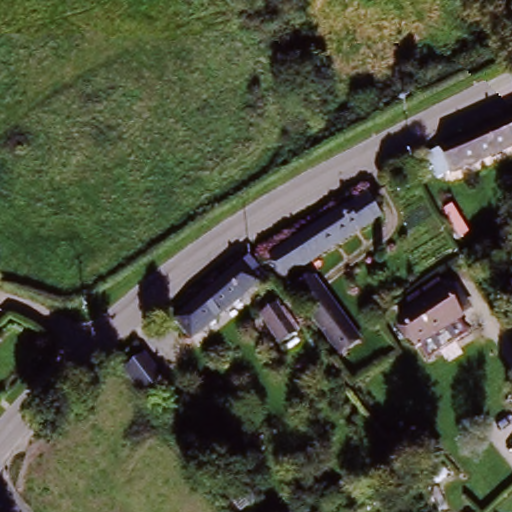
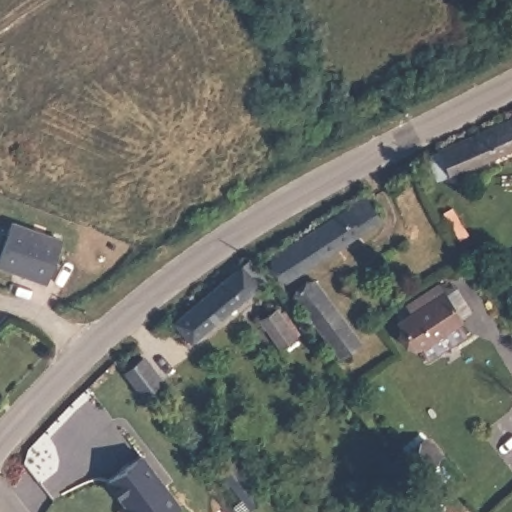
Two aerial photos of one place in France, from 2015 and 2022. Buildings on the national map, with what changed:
unchanged [(512,121),(512,144),(442,174),(434,154),(512,121)]
unchanged [(311,271),(273,295),(267,285),(191,350),(173,325),(251,260),(254,266),(366,202),(385,223),(311,271)]
unchanged [(506,254),(495,237),(512,227),(512,265),(506,254)]
new [(15,230),(64,247),(49,291),(0,272),(15,230)]
unchanged [(363,345),(341,362),(290,297),(317,281),(363,345)]
unchanged [(434,360),(426,348),(424,350),(405,322),(414,316),(407,307),(439,285),(445,294),(463,320),(458,324),(467,336),(434,360)]
unchanged [(279,311),(298,342),(279,353),(260,324),(279,311)]
unchanged [(123,377),(142,361),(163,385),(143,401),(123,377)]
unchanged [(442,458),(414,485),(389,467),(421,439),(442,458)]
unchanged [(219,461),(230,452),(248,474),(236,482),(219,461)]
unchanged [(201,468),(211,460),(223,475),(213,482),(201,468)]
new [(146,466),(160,483),(168,494),(183,512),(131,512),(114,492),(146,466)]

